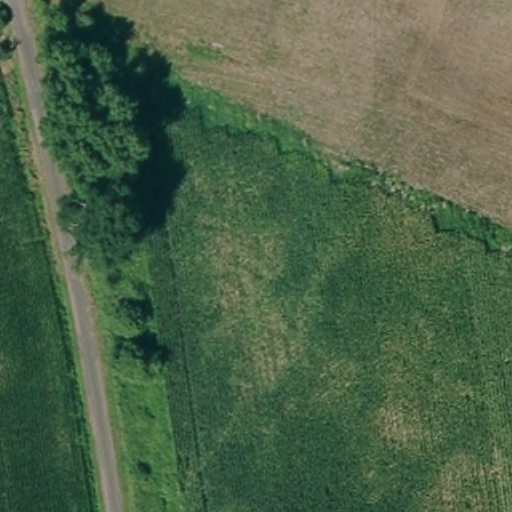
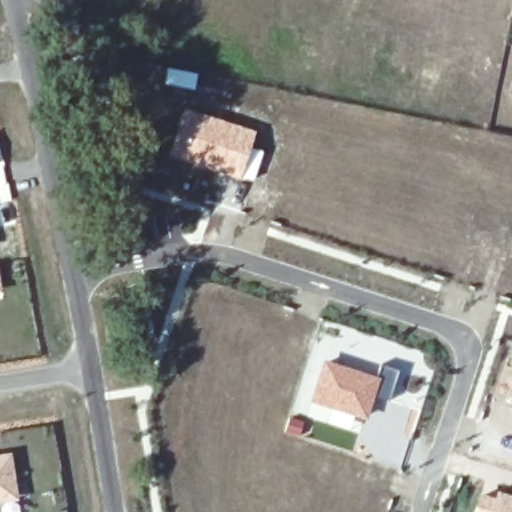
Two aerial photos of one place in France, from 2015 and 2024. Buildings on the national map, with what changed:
new [(184,106),(257,129),(252,146),(264,150),(254,183),(168,156),(184,106)]
new [(0,291),(0,276),(3,290),(0,291)]
new [(322,358),(379,376),(382,364),(399,369),(389,400),(375,396),(367,420),(308,401),(322,358)]
new [(19,499),(0,502),(0,453),(11,451),(19,499)]
new [(479,490),(494,496),(497,489),(512,494),(512,512),(472,512),(479,490)]

